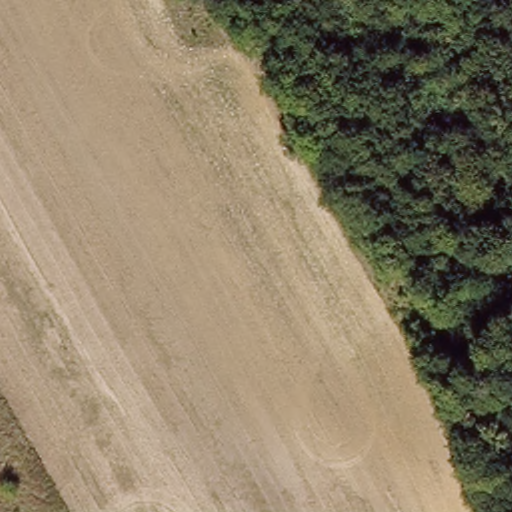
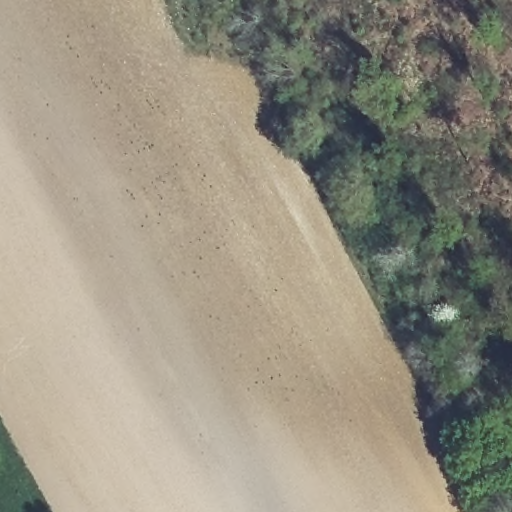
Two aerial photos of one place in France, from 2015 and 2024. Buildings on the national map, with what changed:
[]

